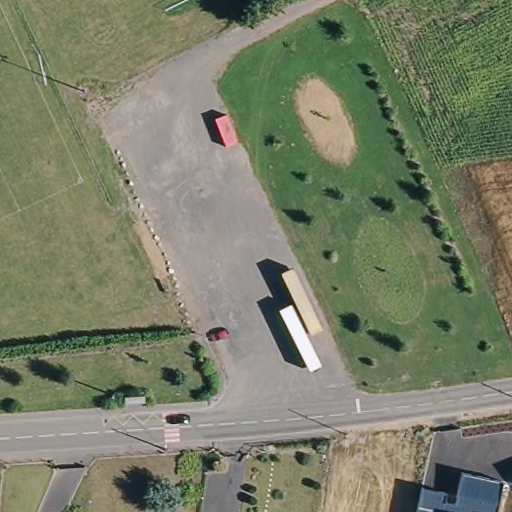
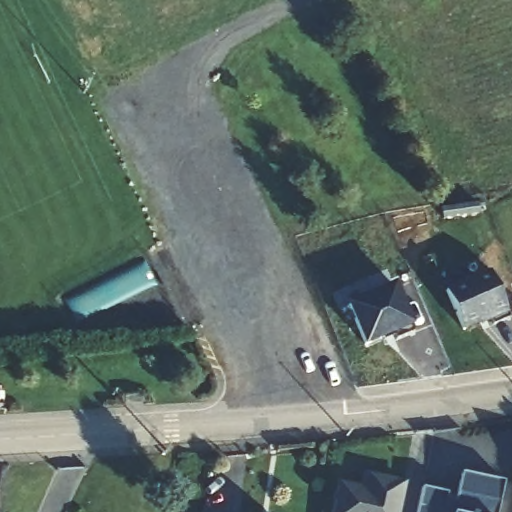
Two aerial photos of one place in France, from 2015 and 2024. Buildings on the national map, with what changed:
new [(489,272),(507,313),(463,332),(445,290),(489,272)]
new [(412,329),(364,348),(345,306),(395,284),(412,327),(412,329)]
unchanged [(445,501),(457,503),(463,473),(505,482),(499,512),(416,512),(421,487),(447,491),(445,501)]
new [(333,512),(340,483),(366,487),(367,475),(407,483),(401,512),(333,512)]

